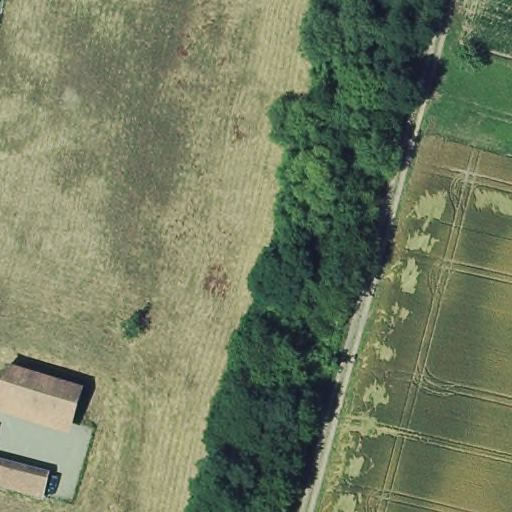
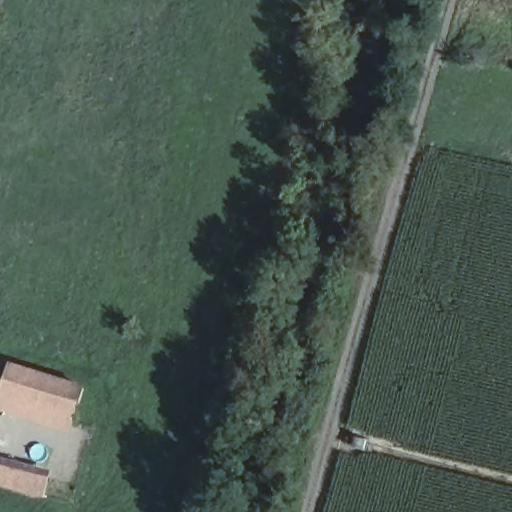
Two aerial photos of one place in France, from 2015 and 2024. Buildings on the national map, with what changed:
unchanged [(69,425),(43,417),(0,404),(0,386),(5,371),(5,369),(52,384),(78,392),(69,425)]
unchanged [(37,496),(27,493),(0,486),(0,464),(32,473),(42,476),(37,496)]

